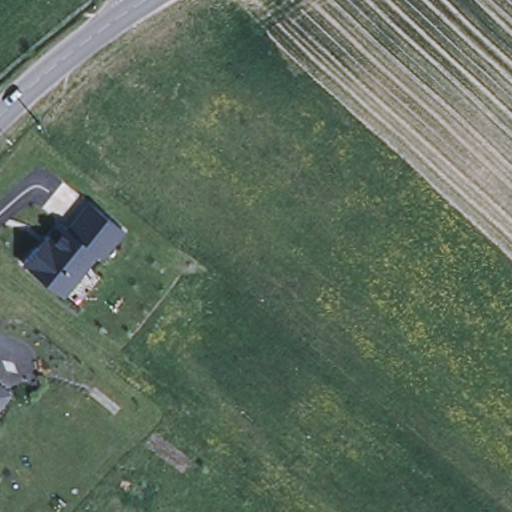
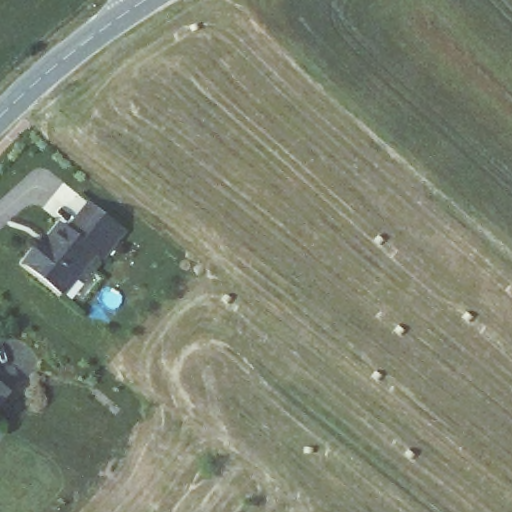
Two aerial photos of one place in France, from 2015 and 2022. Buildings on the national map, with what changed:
unchanged [(47,241),(60,224),(67,229),(88,203),(123,231),(101,258),(95,252),(61,295),(22,263),(44,237),(47,241)]
unchanged [(0,407),(0,393),(7,398),(0,407)]

